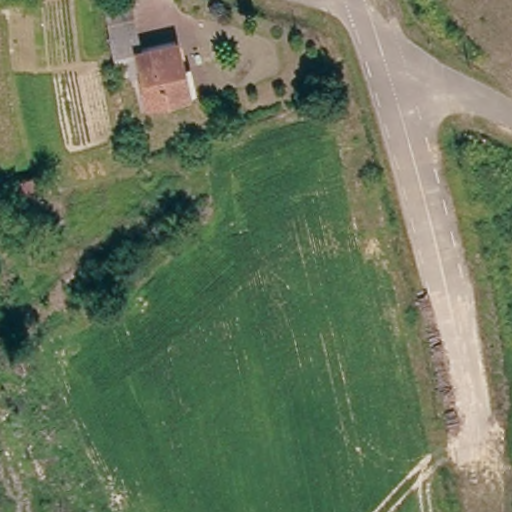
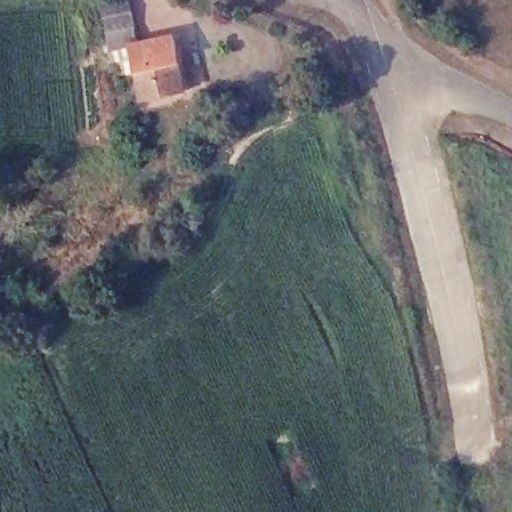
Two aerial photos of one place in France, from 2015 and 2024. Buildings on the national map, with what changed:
unchanged [(132,0),(135,0),(145,47),(144,47),(139,47),(139,48),(117,52),(112,32),(113,32),(108,6),(132,0)]
unchanged [(144,47),(145,47),(179,39),(191,92),(150,101),(139,48),(139,47),(144,47)]
unchanged [(39,174),(43,186),(21,192),(17,181),(39,174)]

